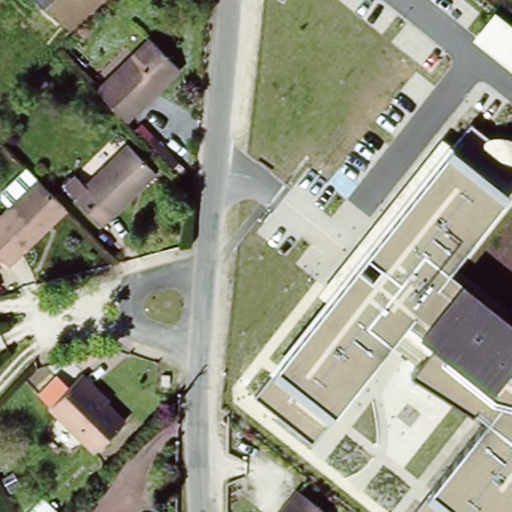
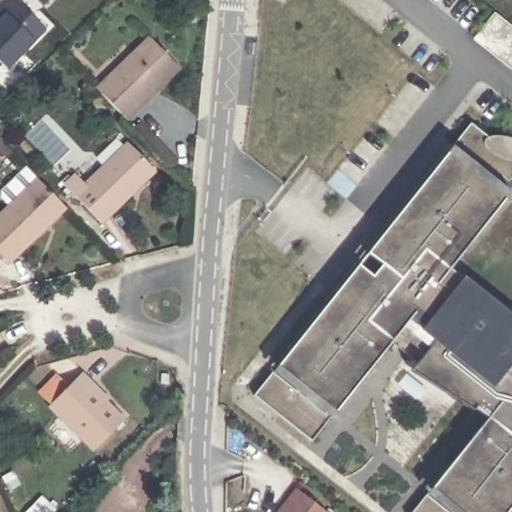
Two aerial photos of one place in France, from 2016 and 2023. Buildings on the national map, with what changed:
new [(12,0),(15,0),(44,28),(6,68),(0,62),(0,13),(2,11),(12,0)]
unchanged [(49,0),(44,6),(37,0),(49,0)]
unchanged [(495,11),(512,24),(512,70),(472,39),(495,11)]
unchanged [(97,95),(151,43),(181,73),(127,125),(97,95)]
unchanged [(274,371),(452,147),(470,125),(488,135),(512,136),(512,305),(506,313),(512,318),(512,512),(411,512),(427,493),(487,418),(411,370),(418,362),(392,341),(335,410),(310,439),(256,393),(274,371)]
unchanged [(80,190),(123,150),(150,177),(108,219),(80,190)]
unchanged [(0,265),(0,216),(33,184),(61,212),(4,268),(0,265)]
unchanged [(56,406),(87,373),(98,383),(95,386),(130,421),(100,448),(56,406)]
unchanged [(297,487),(328,512),(277,512),(297,487)]

